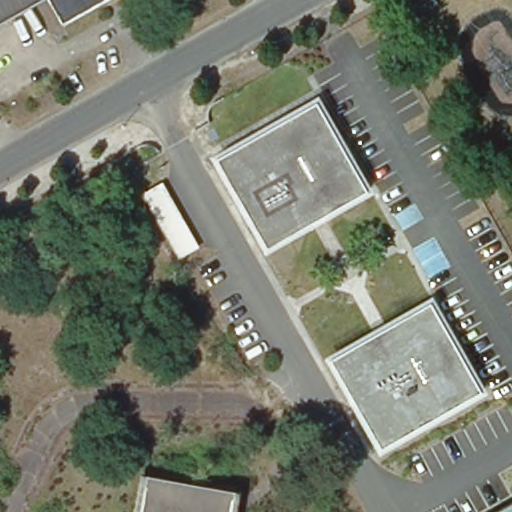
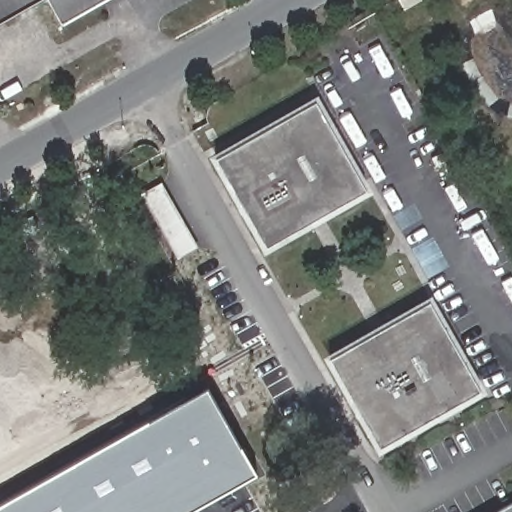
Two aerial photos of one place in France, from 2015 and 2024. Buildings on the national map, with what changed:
unchanged [(0,0),(43,0),(0,24),(0,0)]
unchanged [(48,0),(104,0),(104,1),(61,25),(48,0)]
unchanged [(319,101),(369,190),(269,247),(218,157),(319,101)]
unchanged [(177,258),(138,193),(160,180),(198,245),(177,258)]
unchanged [(483,391),(381,448),(330,357),(429,302),(483,391)]
new [(257,475),(190,512),(0,512),(0,505),(208,387),(257,475)]
demolished [(138,475),(229,492),(225,512),(131,512),(138,475)]
unchanged [(512,502),(512,512),(495,512),(512,502)]

